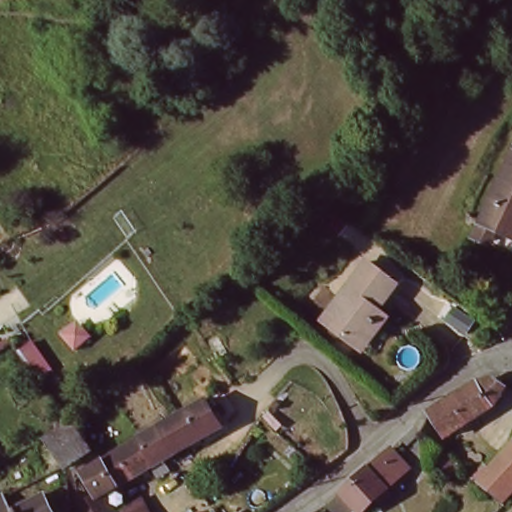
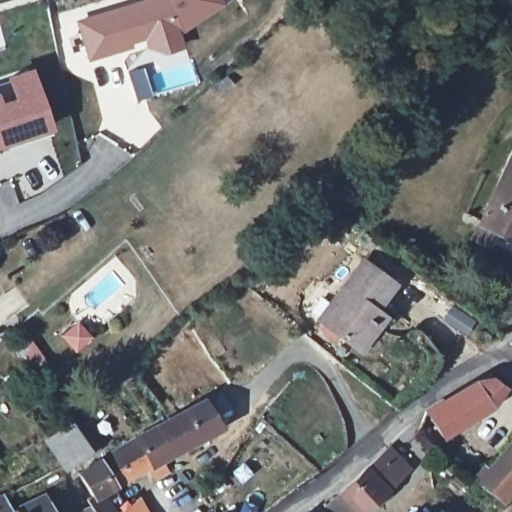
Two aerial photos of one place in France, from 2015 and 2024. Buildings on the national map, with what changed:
new [(223,0),(225,3),(182,33),(184,47),(167,54),(145,46),(144,40),(132,43),(132,48),(87,61),(77,20),(143,0),(223,0)]
new [(2,101),(13,97),(5,75),(30,67),(54,129),(0,149),(0,95),(2,101)]
unchanged [(512,145),(512,246),(486,234),(474,228),(481,213),(512,145)]
unchanged [(358,348),(351,343),(317,315),(364,257),(394,281),(374,305),(385,314),(358,348)]
unchanged [(28,375),(17,360),(15,358),(30,348),(48,374),(33,384),(28,375)]
unchanged [(506,384),(501,392),(499,395),(446,433),(422,410),(433,402),(443,396),(449,392),(472,378),(482,370),(486,369),(506,384)]
unchanged [(86,508),(82,501),(88,497),(76,475),(85,470),(105,458),(129,443),(175,417),(202,401),(217,424),(158,460),(166,471),(152,479),(145,468),(98,496),(108,512),(88,512),(86,508)]
unchanged [(45,437),(72,423),(90,452),(81,456),(62,465),(62,464),(45,437)]
unchanged [(512,481),(505,488),(496,497),(471,475),(512,431),(512,481)]
unchanged [(359,512),(336,512),(325,498),(335,492),(342,488),(360,470),(379,454),(383,451),(387,447),(406,466),(398,474),(369,502),(359,512)]
unchanged [(7,509),(37,495),(46,512),(0,512),(0,496),(7,509)]
unchanged [(127,508),(145,497),(154,512),(120,512),(127,508)]
unchanged [(86,508),(88,512),(80,512),(86,508)]

